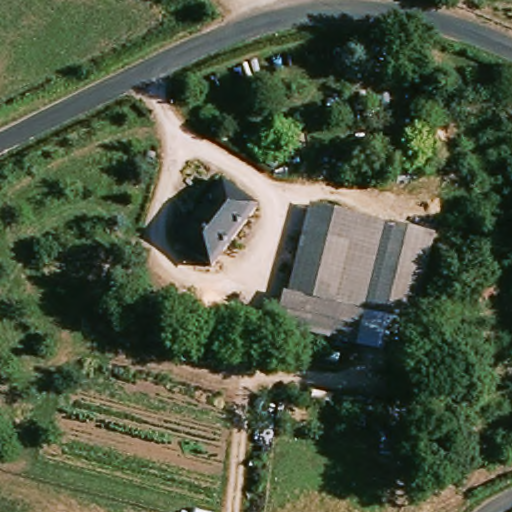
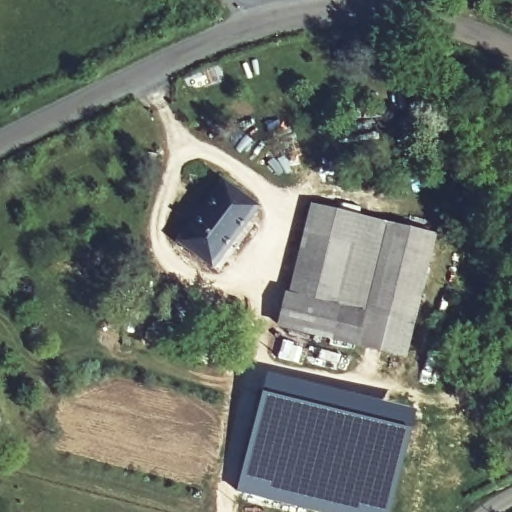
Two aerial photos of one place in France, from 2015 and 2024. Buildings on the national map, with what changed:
unchanged [(257,206),(215,270),(180,246),(222,183),(257,206)]
unchanged [(310,199),(392,221),(365,313),(284,294),(310,199)]
unchanged [(392,221),(438,233),(417,323),(365,313),(392,221)]
unchanged [(365,313),(357,345),(275,327),(284,294),(365,313)]
new [(414,410),(406,446),(388,512),(317,512),(235,490),(266,372),(414,410)]

